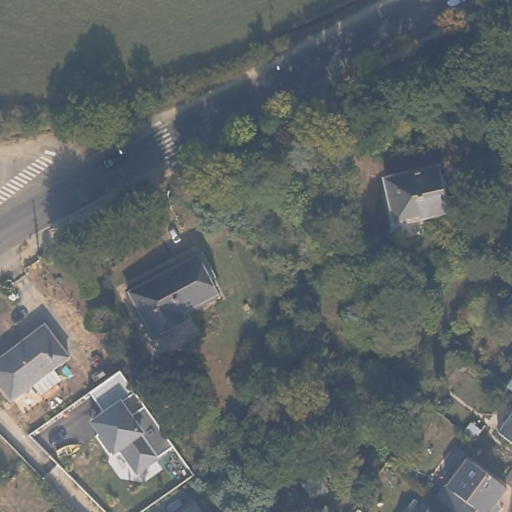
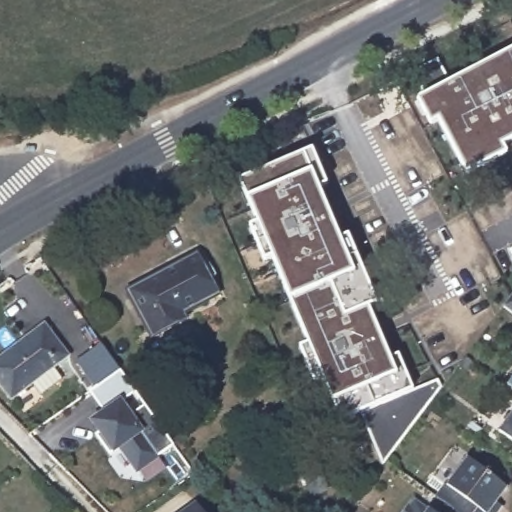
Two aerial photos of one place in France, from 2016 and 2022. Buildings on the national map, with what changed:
new [(439,120),(431,125),(417,99),(424,95),(412,71),(438,57),(450,81),(512,48),(512,141),(505,144),(509,153),(468,174),(439,120)]
new [(323,377),(314,380),(300,346),(308,343),(290,300),(272,258),(265,261),(250,225),(257,222),(247,198),(240,179),(315,147),(330,184),(320,189),(341,238),(350,234),(379,303),(370,306),(390,356),(399,354),(413,390),(437,379),(443,385),(382,467),(360,412),(340,420),(332,401),(323,377)]
demolished [(286,175),(315,163),(321,178),(292,189),(286,175)]
demolished [(384,177),(435,164),(447,206),(395,219),(384,177)]
unchanged [(127,287),(194,251),(215,290),(180,308),(183,314),(150,330),(127,287)]
unchanged [(512,309),(510,308),(512,305),(512,309)]
unchanged [(40,389),(31,377),(10,393),(0,380),(0,351),(21,334),(25,337),(46,320),(69,349),(54,360),(62,372),(40,389)]
unchanged [(120,371),(175,447),(139,474),(122,449),(115,454),(112,456),(96,435),(99,433),(91,422),(108,411),(90,392),(120,371)]
unchanged [(512,408),(512,438),(497,427),(512,408)]
unchanged [(458,416),(472,426),(465,435),(451,425),(458,416)]
unchanged [(498,512),(465,512),(456,505),(440,494),(451,479),(471,452),(510,483),(500,497),(506,502),(501,508),(498,512)]
unchanged [(296,465),(311,457),(324,487),(310,493),(296,465)]
unchanged [(430,504),(432,503),(444,512),(407,512),(418,496),(430,504)]
unchanged [(202,512),(186,512),(196,504),(202,512)]
unchanged [(451,512),(456,505),(465,512),(451,512)]

